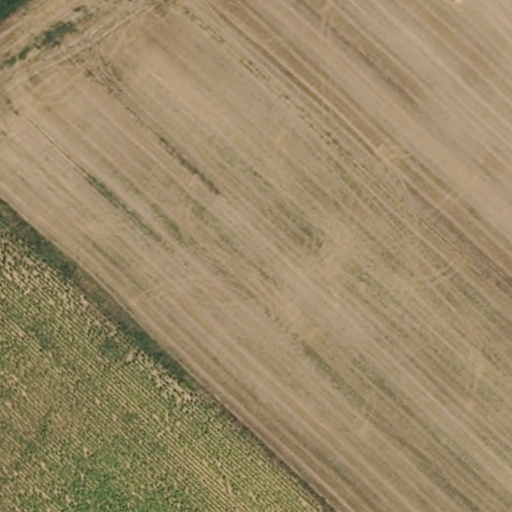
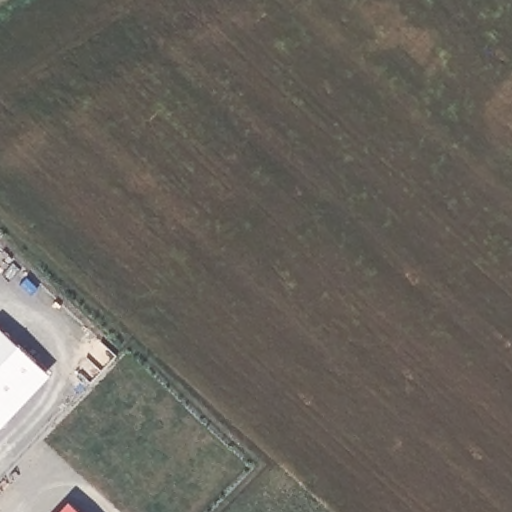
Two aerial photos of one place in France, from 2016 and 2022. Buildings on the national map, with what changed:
new [(52,373),(0,428),(0,324),(52,373)]

